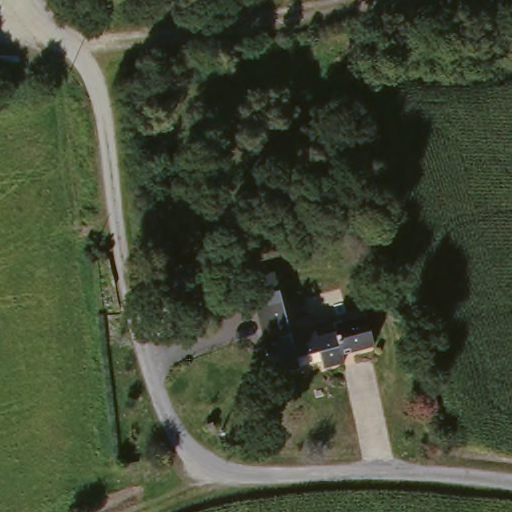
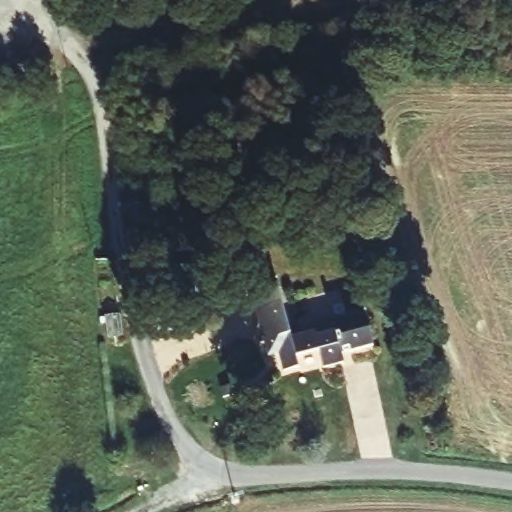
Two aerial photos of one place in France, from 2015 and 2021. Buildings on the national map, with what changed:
unchanged [(167,114),(130,117),(129,105),(166,101),(167,114)]
unchanged [(302,333),(303,336),(324,331),(323,325),(356,318),(363,346),(330,353),(331,363),(310,367),(306,351),(285,355),(285,364),(271,366),(268,352),(257,353),(247,308),(243,290),(270,286),(272,304),(281,335),(302,333)]
unchanged [(195,295),(196,330),(145,331),(144,296),(195,295)]

